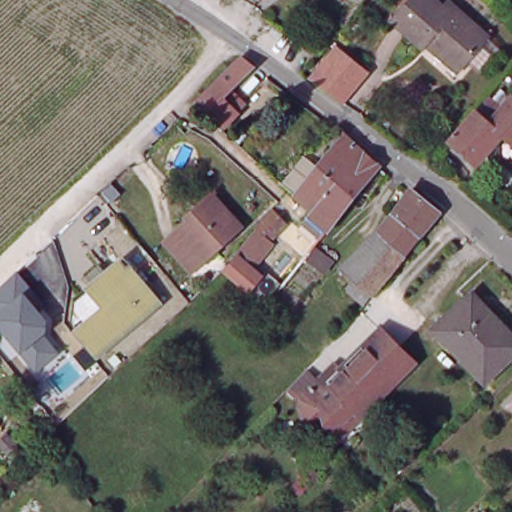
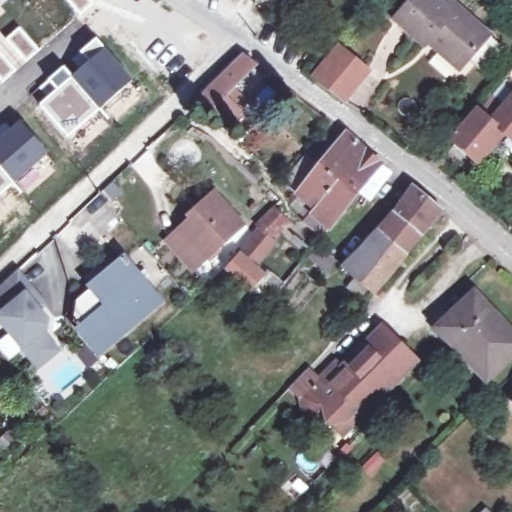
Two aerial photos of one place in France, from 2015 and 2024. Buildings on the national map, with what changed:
new [(64,0),(95,0),(78,15),(64,0)]
unchanged [(427,46),(395,21),(413,0),(437,0),(447,8),(451,2),(490,35),(465,65),(462,70),(429,43),(427,46)]
new [(18,25),(40,49),(0,82),(0,32),(5,37),(18,25)]
new [(83,62),(76,55),(95,36),(133,78),(100,109),(71,73),(83,62)]
unchanged [(347,106),(320,82),(335,65),(344,53),(372,76),(363,86),(347,106)]
unchanged [(227,127),(200,102),(247,56),(262,66),(236,91),(250,105),(227,127)]
new [(64,64),(71,73),(100,109),(67,139),(36,104),(39,101),(32,92),(64,64)]
unchanged [(483,164),(457,141),(483,111),(485,112),(497,98),(508,108),(512,104),(512,136),(510,133),(483,164)]
new [(0,135),(19,118),(48,152),(15,183),(0,196),(0,167),(0,135)]
unchanged [(312,216),(322,203),(306,189),(292,177),(315,150),(328,160),(354,129),(371,143),(389,159),(340,220),(330,233),(312,216)]
unchanged [(362,279),(347,266),(361,253),(383,233),(398,212),(415,190),(417,187),(447,211),(425,232),(408,254),(390,277),(378,292),(380,293),(371,303),(354,289),(362,279)]
unchanged [(246,225),(198,269),(173,243),(207,212),(202,207),(217,194),(246,225)]
unchanged [(285,277),(270,298),(230,264),(263,226),(263,219),(277,206),(290,218),(275,235),(278,238),(257,262),(266,270),(270,265),(285,277)]
unchanged [(128,259),(147,243),(170,270),(155,281),(147,271),(142,275),(164,301),(104,352),(80,323),(82,302),(97,289),(96,288),(87,278),(105,263),(114,273),(130,260),(128,259)]
new [(48,320),(48,330),(45,333),(60,352),(37,371),(22,351),(0,326),(0,287),(18,271),(47,304),(38,309),(48,320)]
unchanged [(485,379),(437,328),(473,294),(503,325),(512,334),(512,355),(485,379)]
unchanged [(342,418),(332,421),(329,412),(313,415),(308,416),(302,395),(301,392),(292,383),(295,380),(308,367),(312,363),(322,374),(327,369),(340,356),(345,362),(385,323),(421,359),(367,411),(360,419),(351,428),(342,418)]
unchanged [(485,511),(486,512),(485,512),(485,511)]

